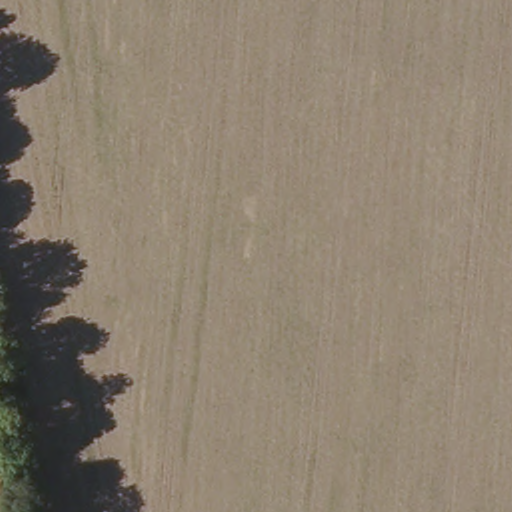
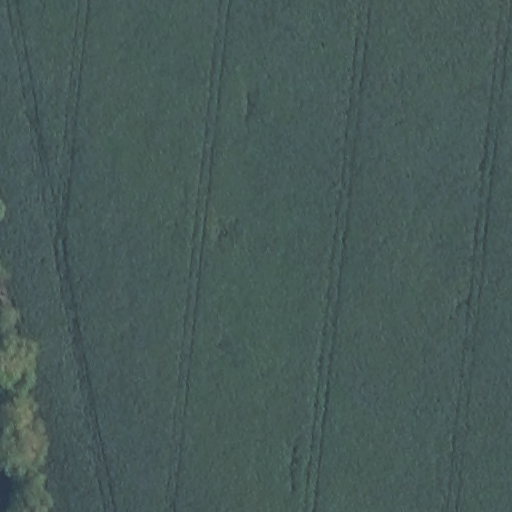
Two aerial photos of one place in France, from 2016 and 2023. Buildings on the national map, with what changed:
[]

